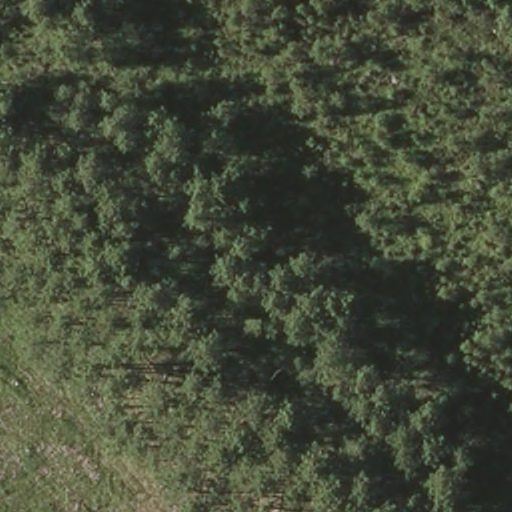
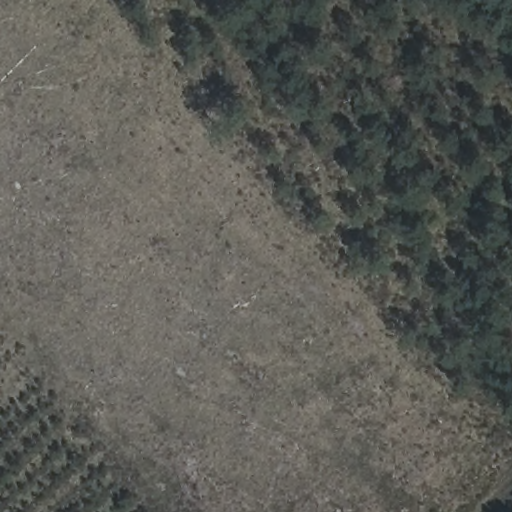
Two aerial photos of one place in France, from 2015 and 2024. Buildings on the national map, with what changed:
[]

